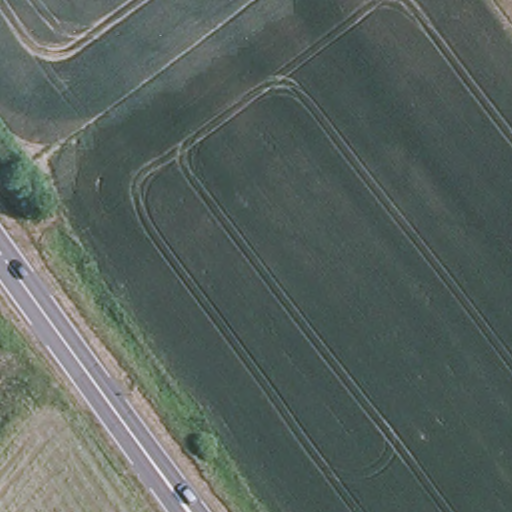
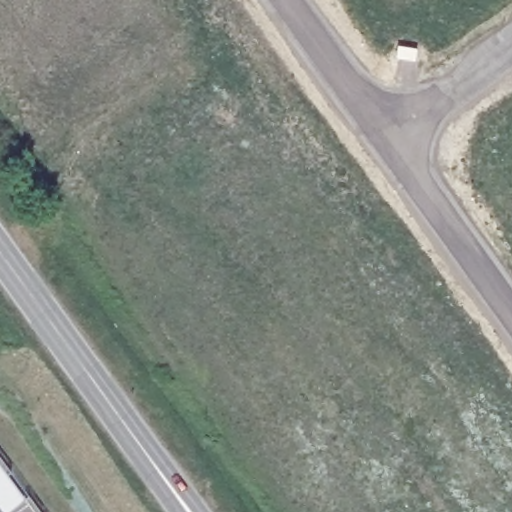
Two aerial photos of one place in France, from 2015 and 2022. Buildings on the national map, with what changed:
new [(25,499),(8,512),(3,512),(0,507),(0,466),(25,499)]

